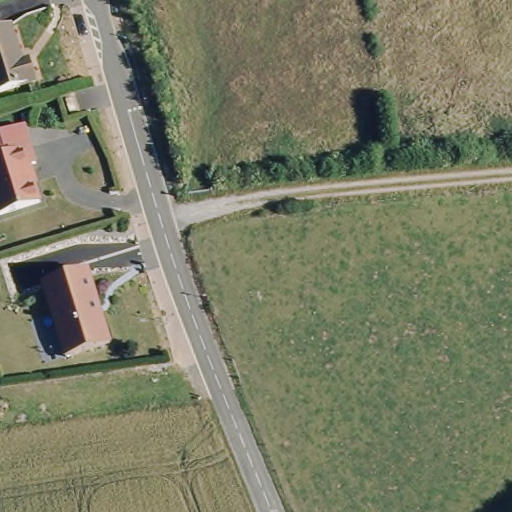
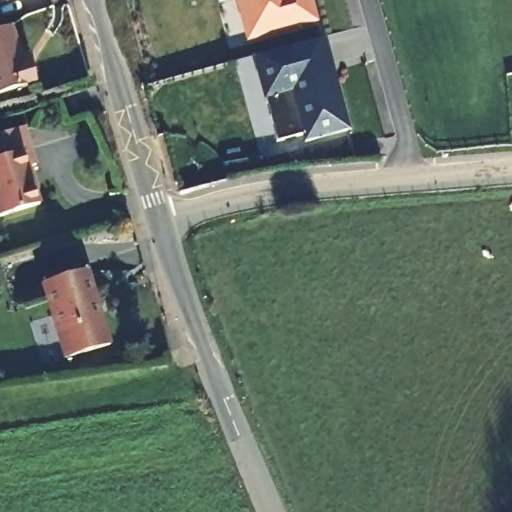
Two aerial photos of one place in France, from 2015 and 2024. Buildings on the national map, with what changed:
new [(247,39),(237,0),(310,0),(315,20),(247,39)]
unchanged [(37,83),(0,94),(0,29),(10,26),(21,62),(30,59),(37,83)]
new [(322,36),(332,70),(327,72),(337,112),(342,111),(347,129),(306,140),(304,133),(277,141),(254,55),(322,36)]
unchanged [(29,169),(40,205),(0,218),(0,160),(31,150),(36,166),(29,169)]
unchanged [(99,289),(115,343),(71,356),(55,302),(49,281),(93,268),(99,289)]

